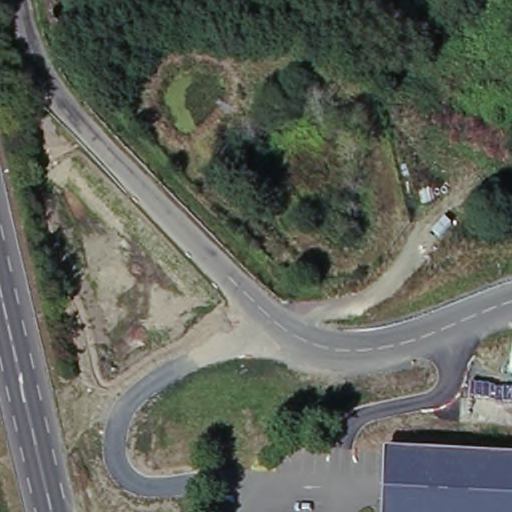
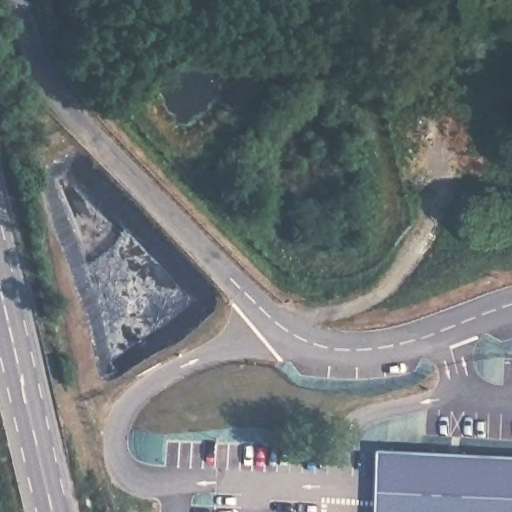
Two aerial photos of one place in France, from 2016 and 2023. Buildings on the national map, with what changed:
unchanged [(512,457),(512,512),(388,512),(390,462),(391,451),(512,457)]

